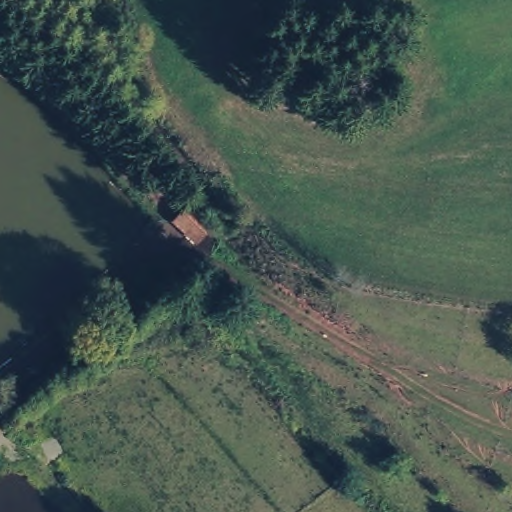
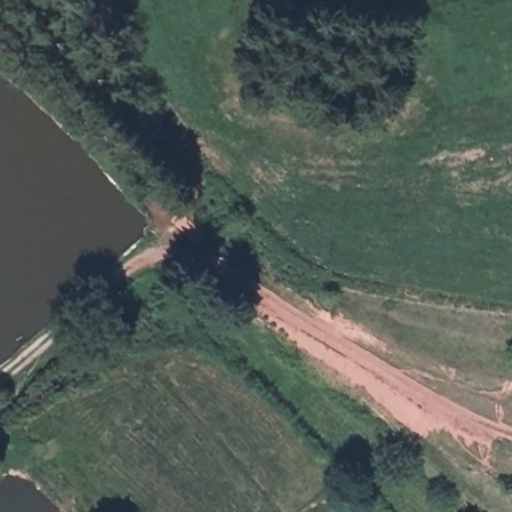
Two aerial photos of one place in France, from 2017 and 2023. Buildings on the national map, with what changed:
unchanged [(187,202),(214,231),(197,247),(170,219),(187,202)]

